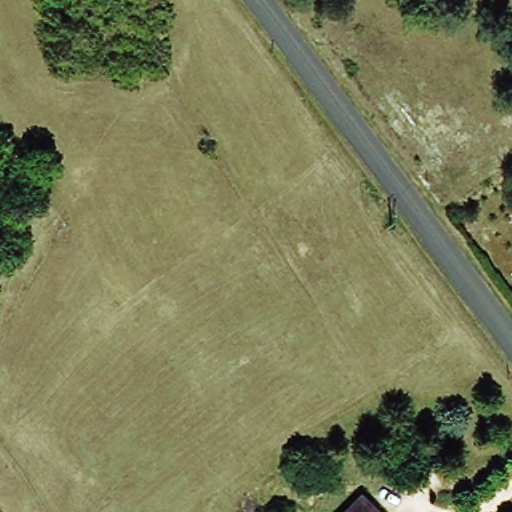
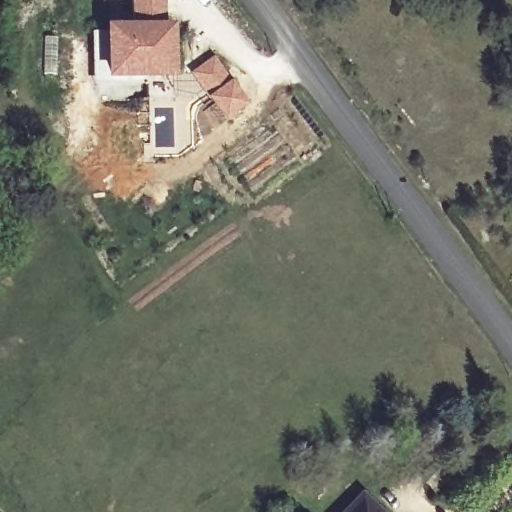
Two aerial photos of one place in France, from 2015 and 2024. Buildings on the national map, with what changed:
new [(131,0),(164,0),(165,24),(132,25),(131,0)]
new [(176,24),(175,80),(105,81),(105,26),(176,24)]
new [(247,105),(225,121),(190,75),(213,58),(247,105)]
unchanged [(375,512),(344,512),(360,496),(375,512)]

